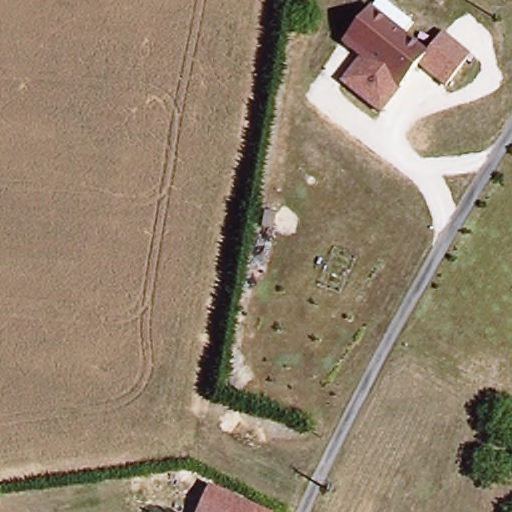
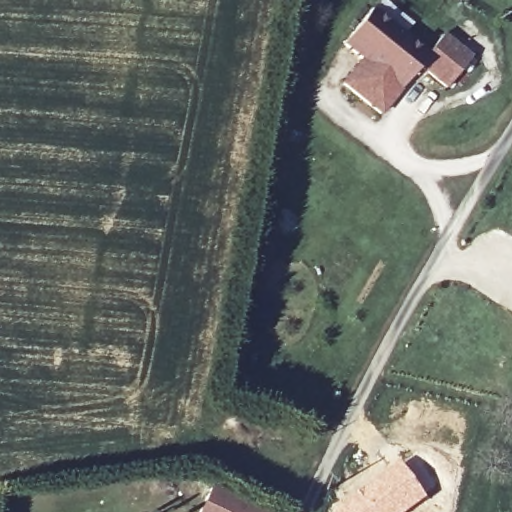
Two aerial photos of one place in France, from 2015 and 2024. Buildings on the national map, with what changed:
unchanged [(340,84),(359,58),(340,44),(365,10),(422,53),(437,32),(466,54),(444,84),(416,64),(384,107),(379,113),(371,106),(340,84)]
new [(399,461),(427,497),(407,512),(333,512),(331,508),(399,461)]
unchanged [(266,512),(199,512),(209,488),(266,512)]

